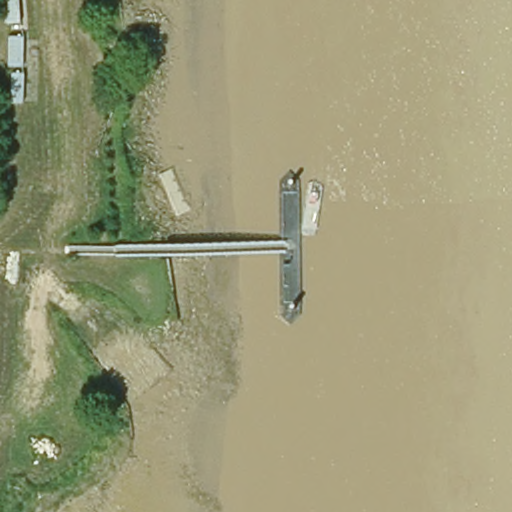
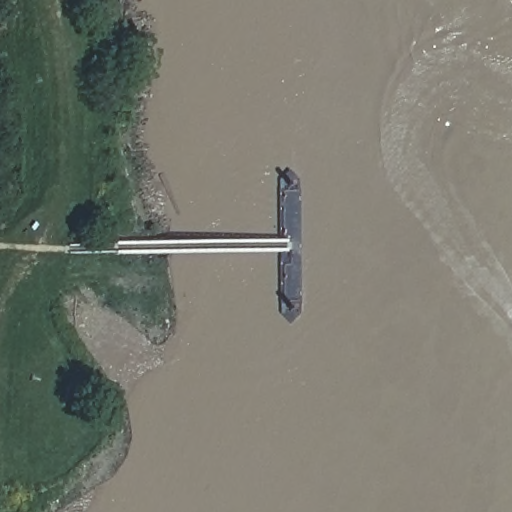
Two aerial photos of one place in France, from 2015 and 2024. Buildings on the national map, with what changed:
[]

